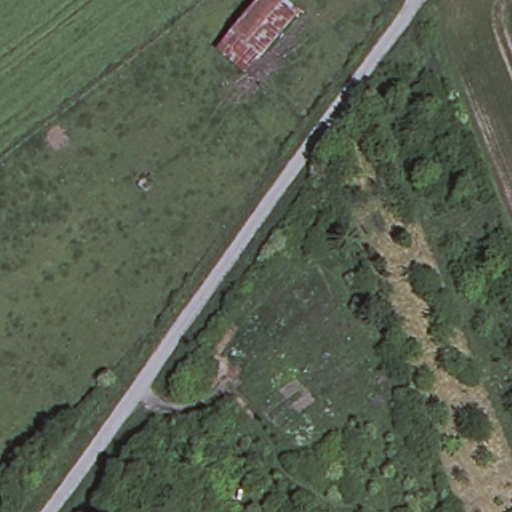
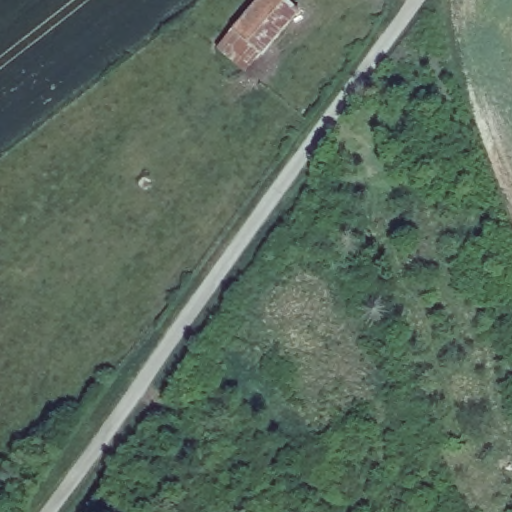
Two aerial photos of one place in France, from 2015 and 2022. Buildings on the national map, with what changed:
unchanged [(300,15),(242,72),(215,43),(256,0),(283,0),(300,15)]

